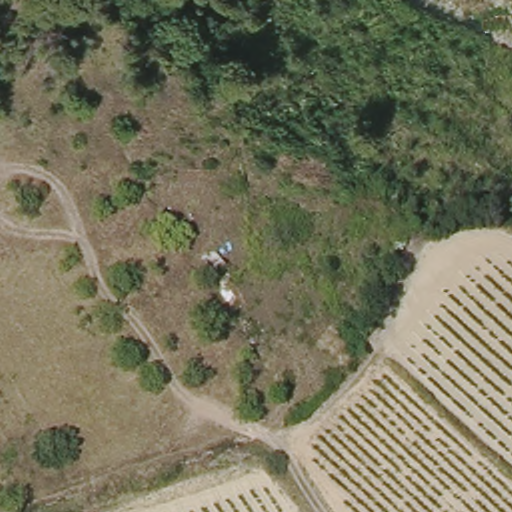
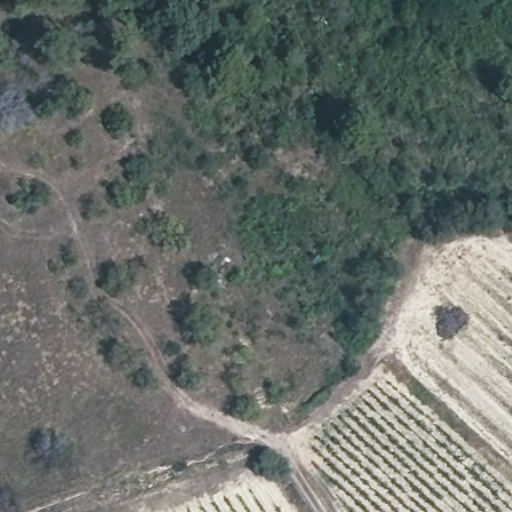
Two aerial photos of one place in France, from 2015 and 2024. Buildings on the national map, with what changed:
[]

